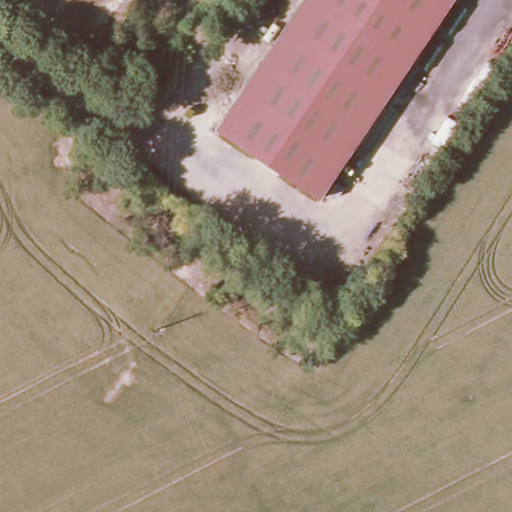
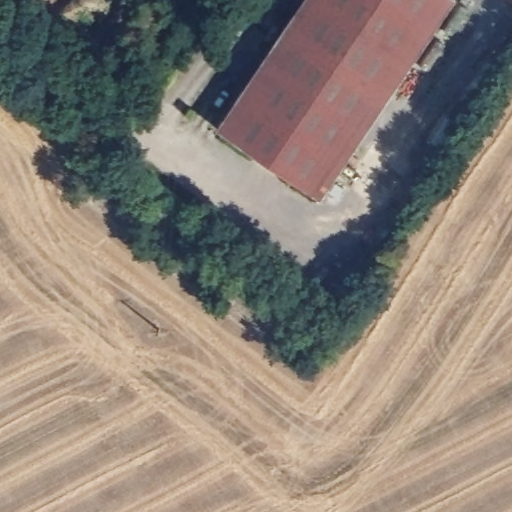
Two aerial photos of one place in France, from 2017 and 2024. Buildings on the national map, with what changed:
unchanged [(362,163),(357,170),(345,162),(325,192),(222,121),(304,0),(455,0),(356,147),(365,153),(358,162),(362,163)]
unchanged [(340,176),(349,182),(342,191),(333,186),(340,176)]

